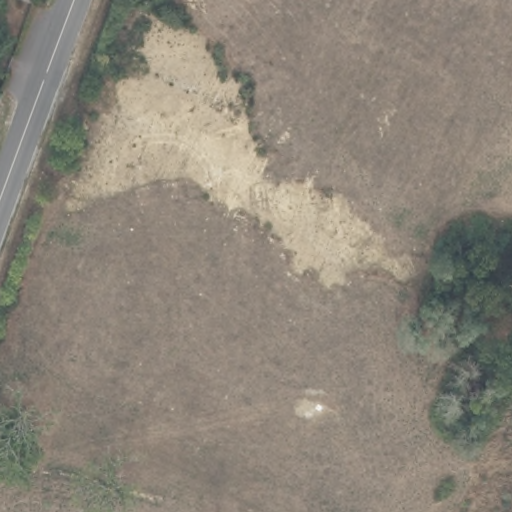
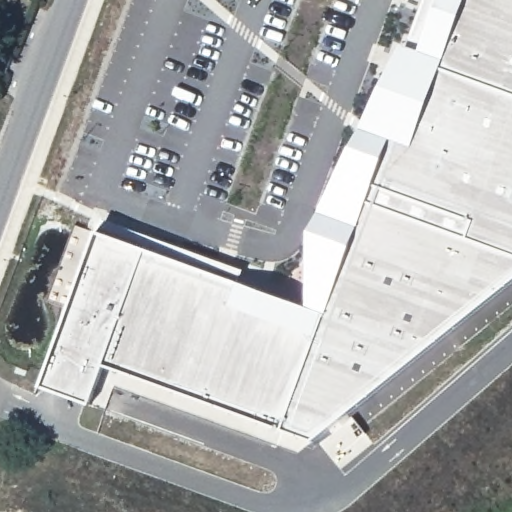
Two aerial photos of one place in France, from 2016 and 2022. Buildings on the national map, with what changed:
new [(106,365),(91,406),(41,387),(99,231),(309,308),(311,232),(402,45),(422,51),(440,0),(512,0),(512,282),(314,442),(106,365)]

